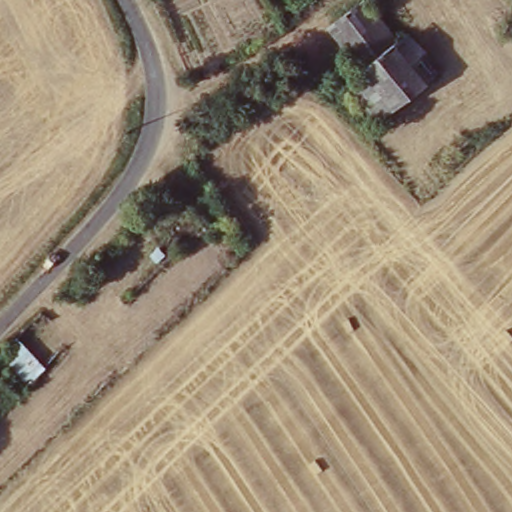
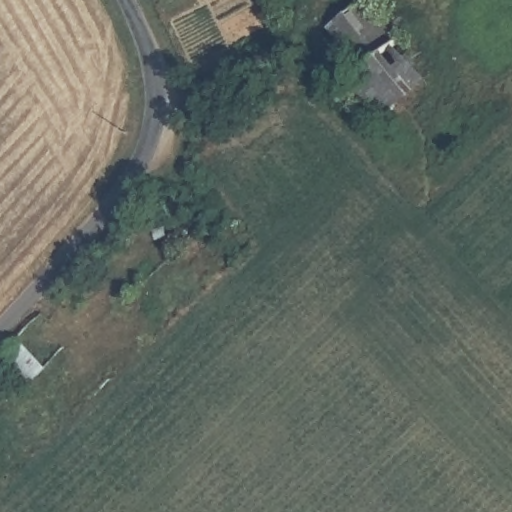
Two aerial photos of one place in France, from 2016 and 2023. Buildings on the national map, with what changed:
unchanged [(402,45),(368,64),(398,111),(378,123),(348,76),(361,67),(333,24),(370,0),(374,0),(402,45)]
unchanged [(416,36),(445,82),(398,111),(368,64),(402,45),(416,36)]

